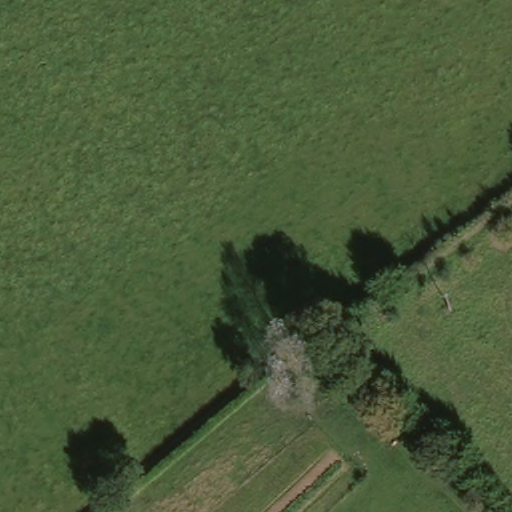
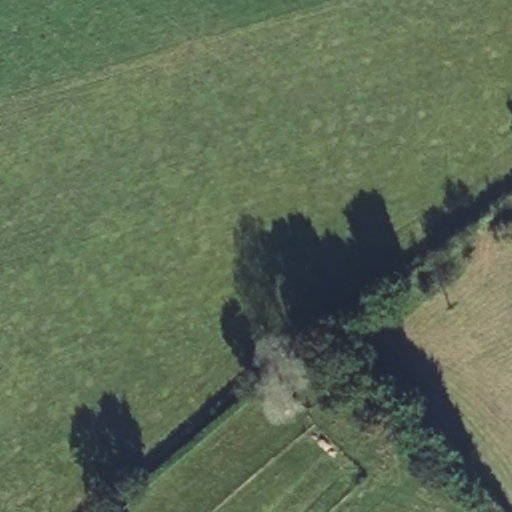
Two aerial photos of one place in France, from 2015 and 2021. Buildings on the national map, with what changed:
[]

